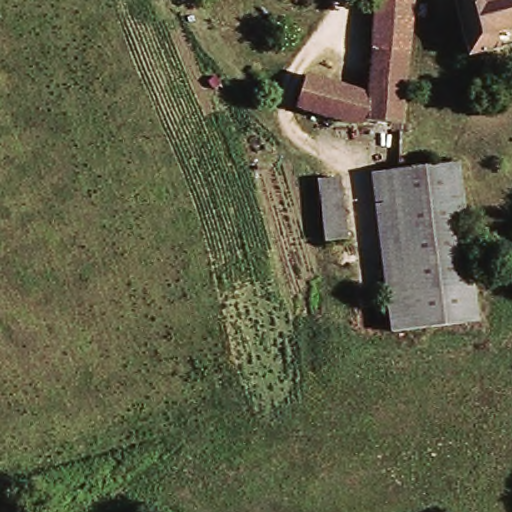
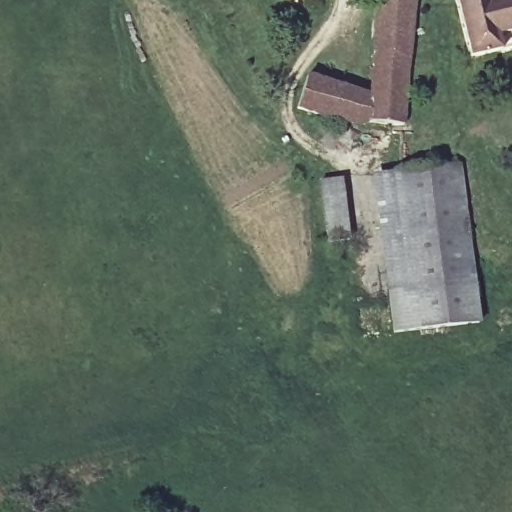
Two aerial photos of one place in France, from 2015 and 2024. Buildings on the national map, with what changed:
unchanged [(292,102),(305,76),(367,92),(378,0),(410,0),(401,119),(345,120),(316,113),(311,124),(302,122),(306,107),(292,102)]
unchanged [(500,53),(467,60),(453,0),(512,0),(512,33),(496,37),(500,53)]
unchanged [(433,240),(382,254),(369,175),(455,162),(470,254),(433,240)]
unchanged [(325,236),(316,181),(338,178),(347,232),(325,236)]
unchanged [(387,292),(382,254),(433,240),(470,254),(473,279),(387,292)]
unchanged [(473,279),(478,326),(390,333),(387,292),(473,279)]

